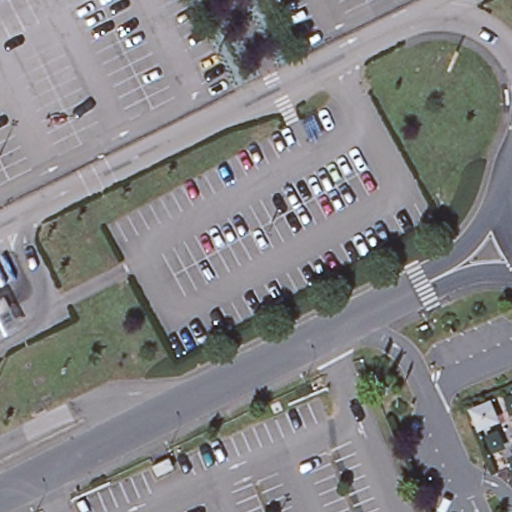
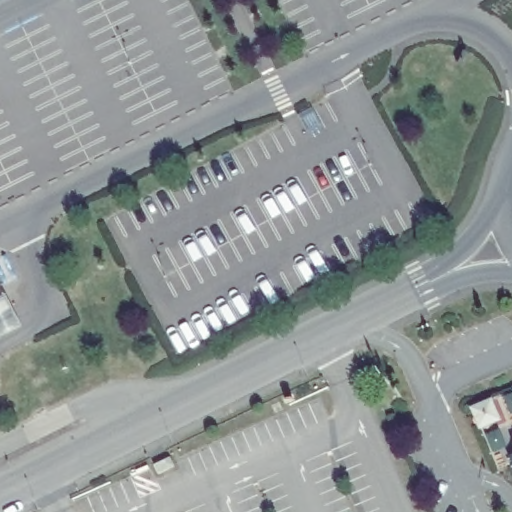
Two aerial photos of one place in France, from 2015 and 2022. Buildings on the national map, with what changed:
unchanged [(6,297),(22,328),(0,339),(0,301),(6,297)]

